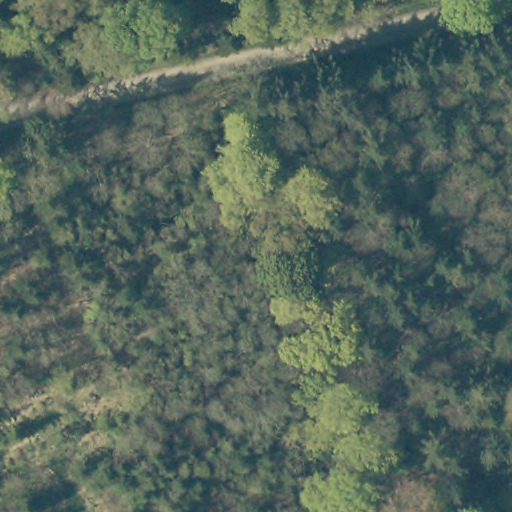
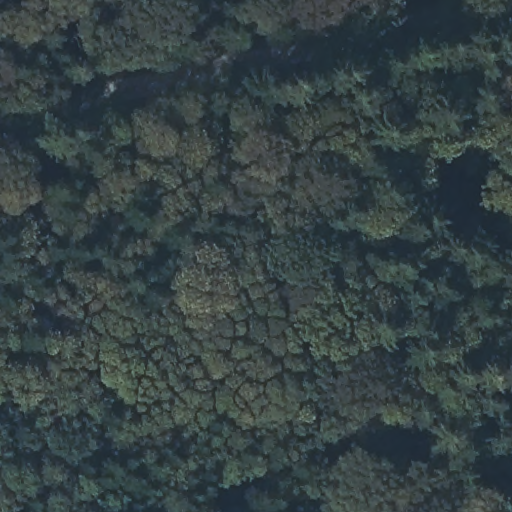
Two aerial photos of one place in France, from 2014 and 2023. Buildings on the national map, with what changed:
[]

